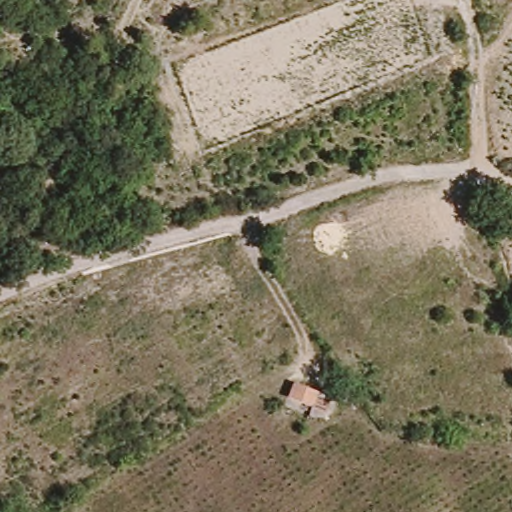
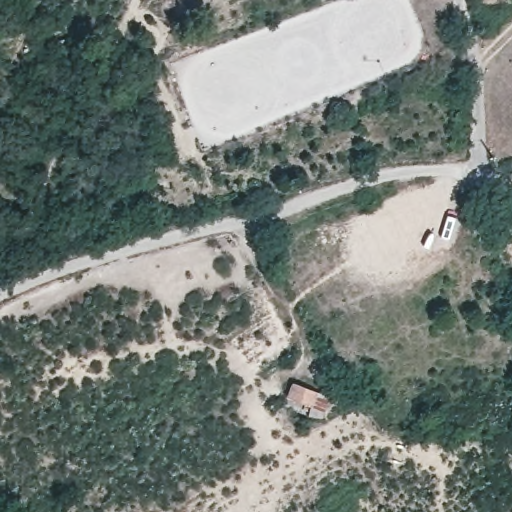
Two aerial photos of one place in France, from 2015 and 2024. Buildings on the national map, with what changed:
unchanged [(304,420),(306,412),(284,404),(288,390),(324,403),(319,425),(304,420)]

